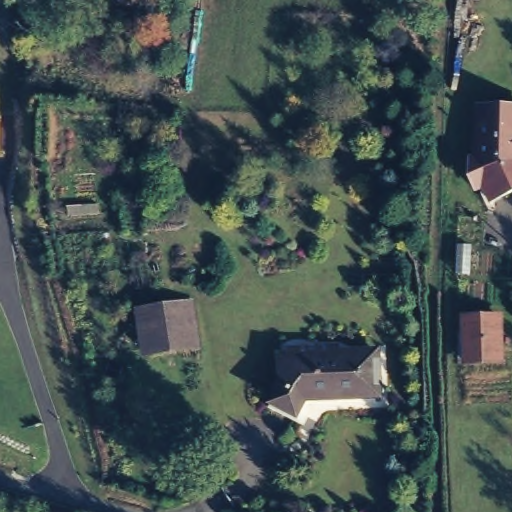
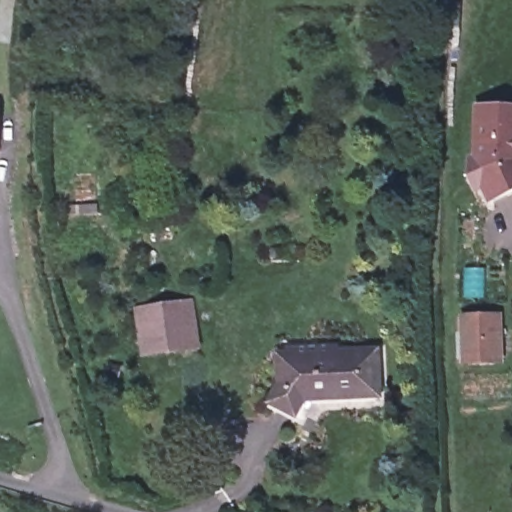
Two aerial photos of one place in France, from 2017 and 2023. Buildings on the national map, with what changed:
unchanged [(473,157),(480,157),(481,103),(512,104),(512,191),(493,199),(487,184),(479,187),(473,174),(473,157)]
unchanged [(83,157),(82,144),(103,142),(103,157),(83,157)]
unchanged [(473,276),(457,277),(457,245),(473,245),(473,276)]
unchanged [(194,292),(203,338),(141,352),(133,302),(194,292)]
unchanged [(505,310),(507,355),(471,356),(470,310),(505,310)]
unchanged [(377,337),(380,394),(310,400),(302,415),(267,397),(275,374),(275,342),(377,337)]

